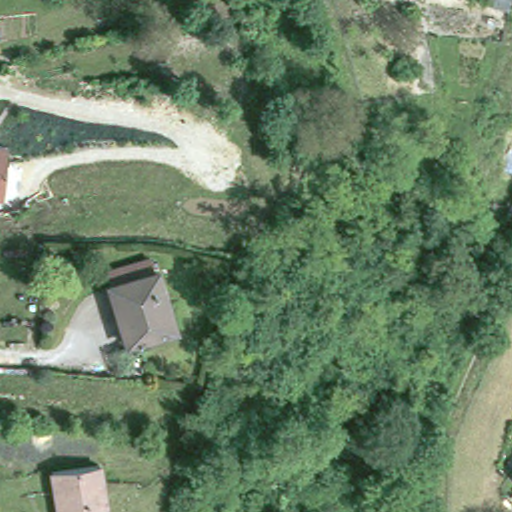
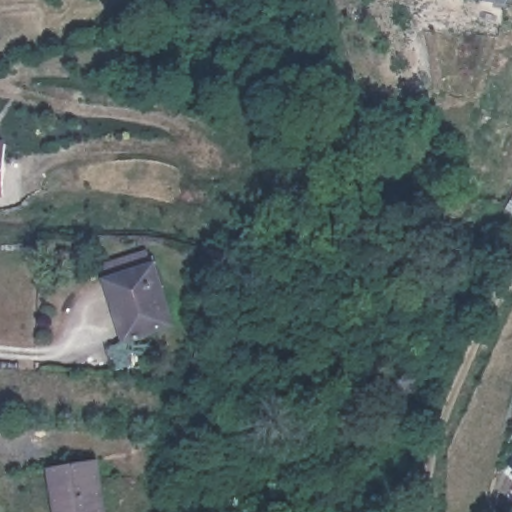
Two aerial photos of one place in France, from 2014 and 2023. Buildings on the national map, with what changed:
unchanged [(0,194),(0,139),(3,139),(0,194)]
unchanged [(128,339),(109,277),(158,262),(179,325),(128,339)]
unchanged [(55,483),(52,465),(100,457),(110,512),(66,512),(60,482),(55,483)]

